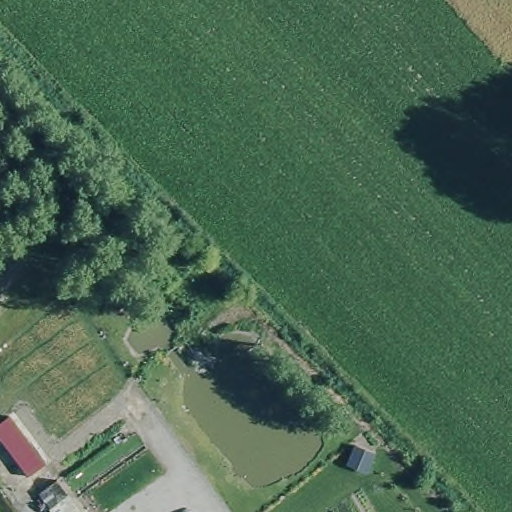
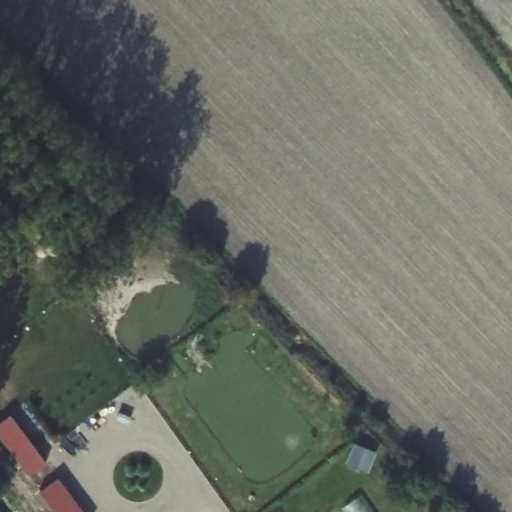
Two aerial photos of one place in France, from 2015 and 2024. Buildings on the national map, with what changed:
unchanged [(11,415),(47,463),(29,476),(0,439),(0,423),(11,415)]
unchanged [(24,512),(19,506),(51,481),(56,487),(76,512),(24,512)]

